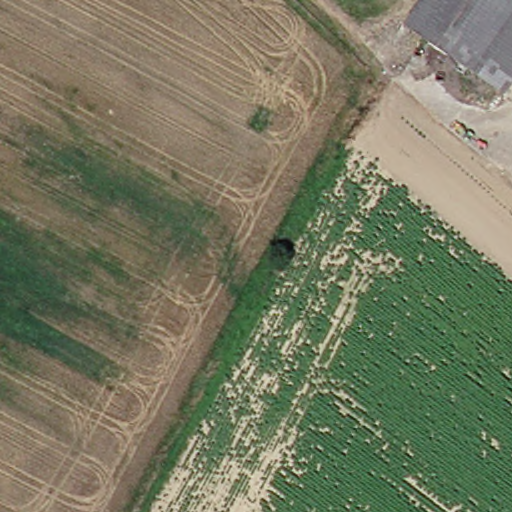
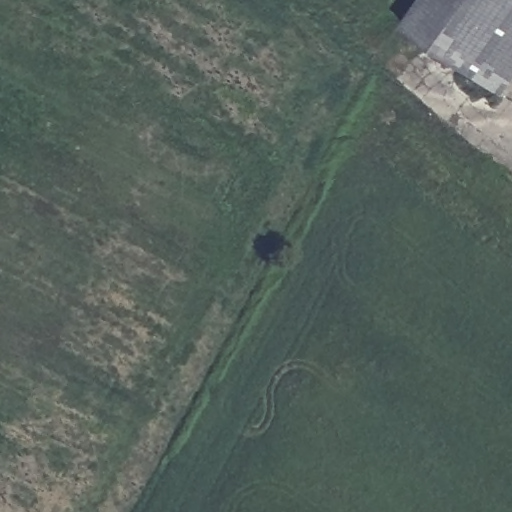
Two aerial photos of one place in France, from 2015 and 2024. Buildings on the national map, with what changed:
unchanged [(422,0),(512,0),(512,10),(468,76),(401,30),(422,0)]
unchanged [(512,76),(497,97),(468,76),(512,10),(512,76)]

